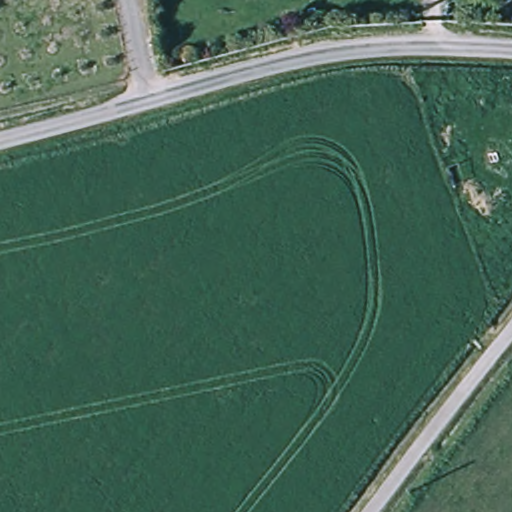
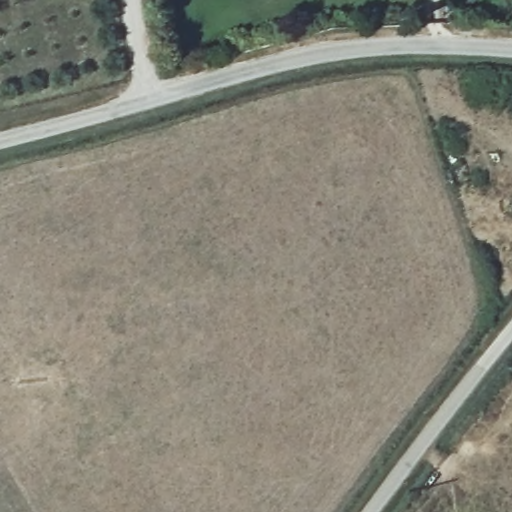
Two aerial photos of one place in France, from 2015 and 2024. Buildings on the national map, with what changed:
unchanged [(455,165),(460,163),(463,172),(462,172),(464,178),(463,178),(465,183),(453,188),(450,178),(446,170),(455,165)]

